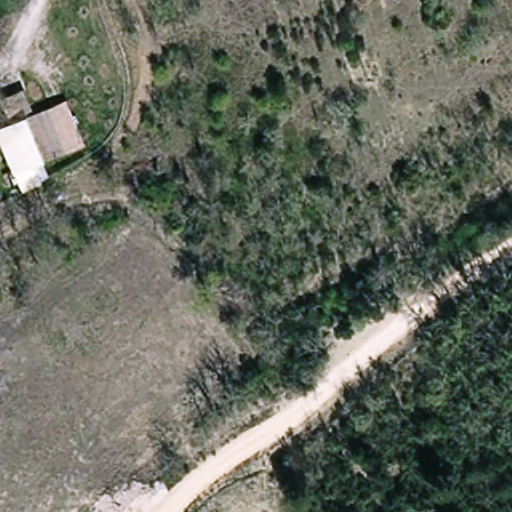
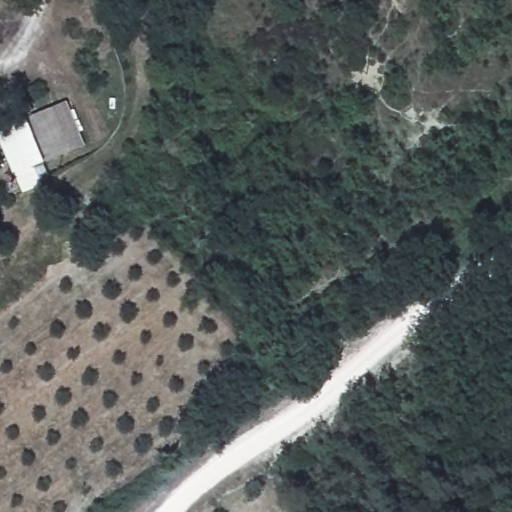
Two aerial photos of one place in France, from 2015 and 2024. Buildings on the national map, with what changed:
unchanged [(25,198),(12,173),(0,145),(0,129),(45,110),(62,155),(36,165),(46,191),(25,198)]

